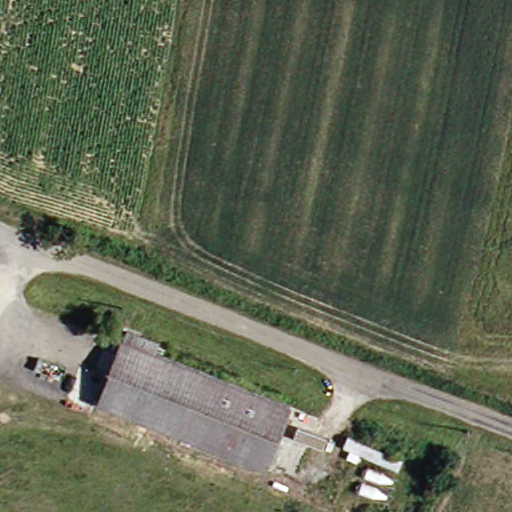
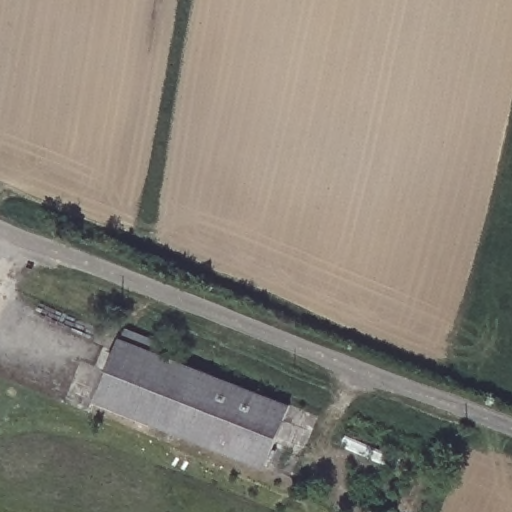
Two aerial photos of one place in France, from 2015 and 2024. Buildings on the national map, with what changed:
unchanged [(299,404),(275,466),(104,400),(133,326),(157,336),(154,347),(299,404)]

